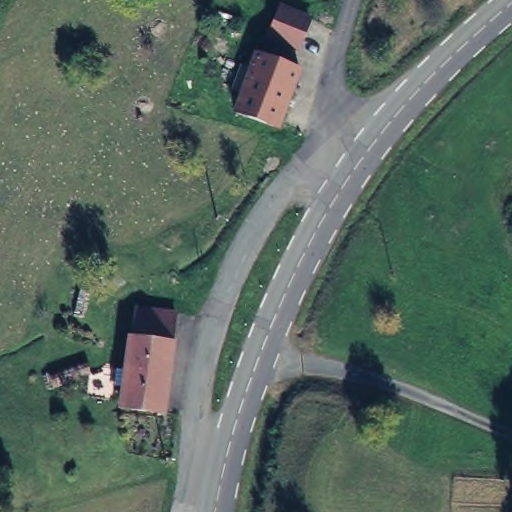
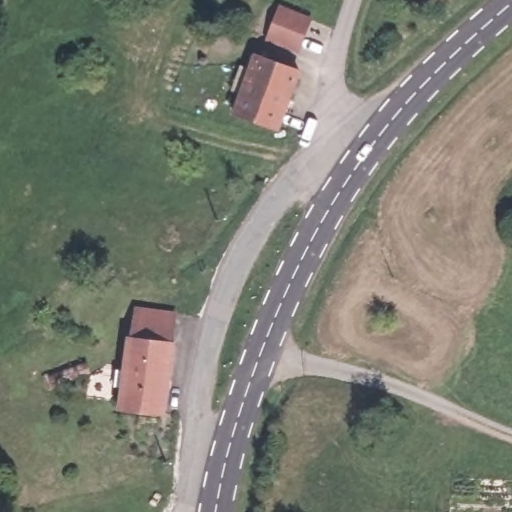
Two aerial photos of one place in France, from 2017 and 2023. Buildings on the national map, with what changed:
unchanged [(443,4),(439,0),(447,0),(443,4)]
unchanged [(309,14),(295,50),(266,36),(278,1),(309,14)]
unchanged [(299,70),(280,128),(238,115),(246,90),(235,83),(241,65),(246,69),(252,59),(259,60),(262,55),(299,70)]
unchanged [(171,315),(160,415),(117,407),(120,385),(123,368),(132,309),(171,315)]

